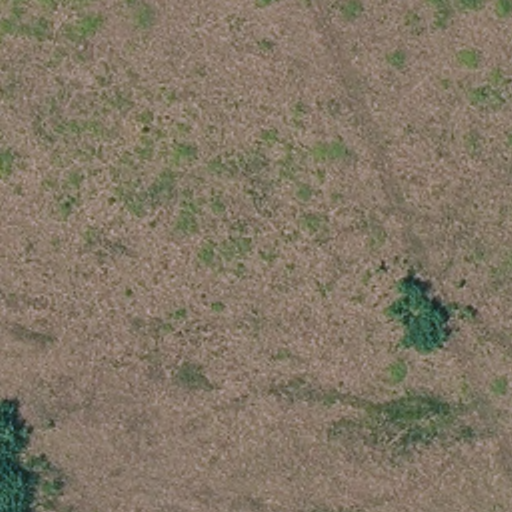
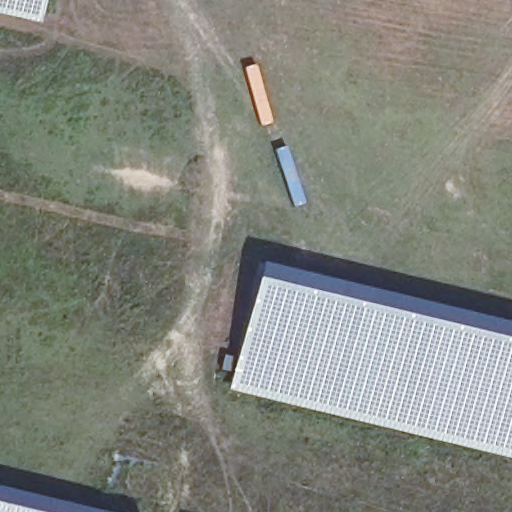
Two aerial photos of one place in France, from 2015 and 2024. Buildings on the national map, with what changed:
new [(41,22),(0,13),(0,0),(46,0),(41,22)]
new [(512,321),(512,458),(229,389),(260,260),(512,321)]
new [(0,512),(0,486),(108,512),(0,512)]

